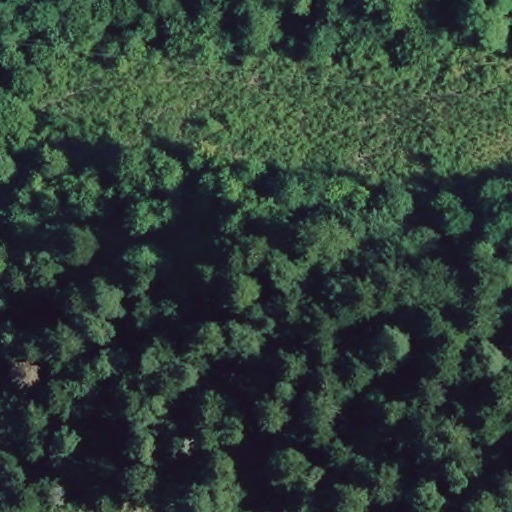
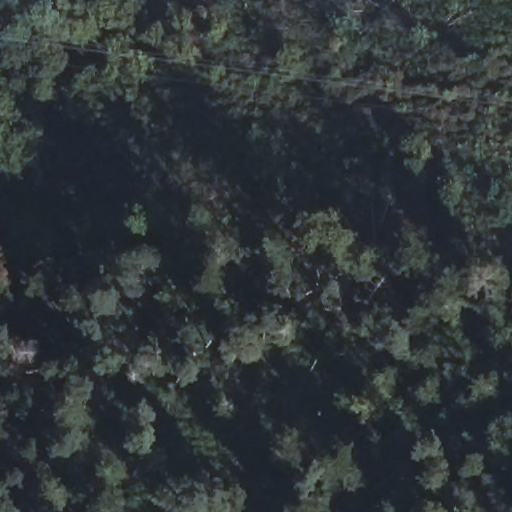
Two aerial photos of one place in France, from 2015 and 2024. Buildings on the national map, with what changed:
[]

